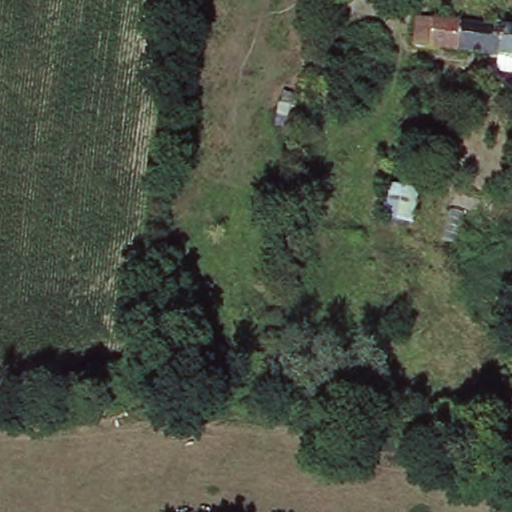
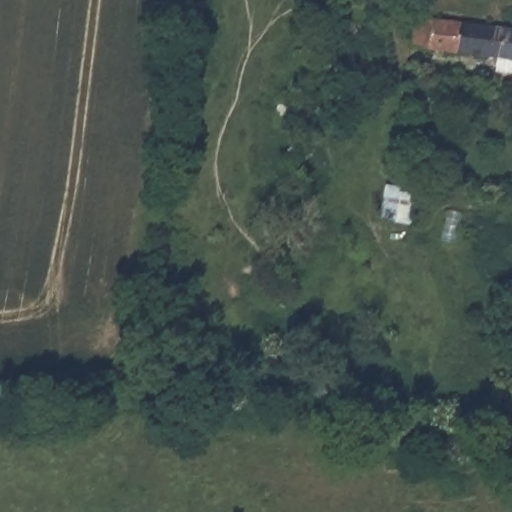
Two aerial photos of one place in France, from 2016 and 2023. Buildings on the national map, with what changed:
unchanged [(413,19),(512,31),(512,61),(409,48),(413,19)]
unchanged [(278,105),(299,108),(295,130),(274,127),(278,105)]
unchanged [(407,117),(427,120),(424,142),(404,140),(407,117)]
unchanged [(382,187),(413,192),(407,225),(376,219),(382,187)]

